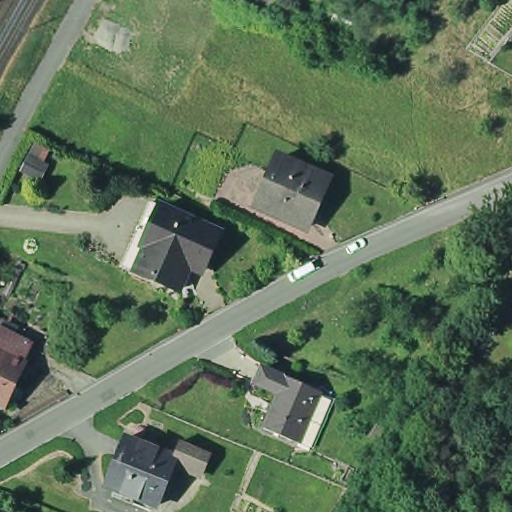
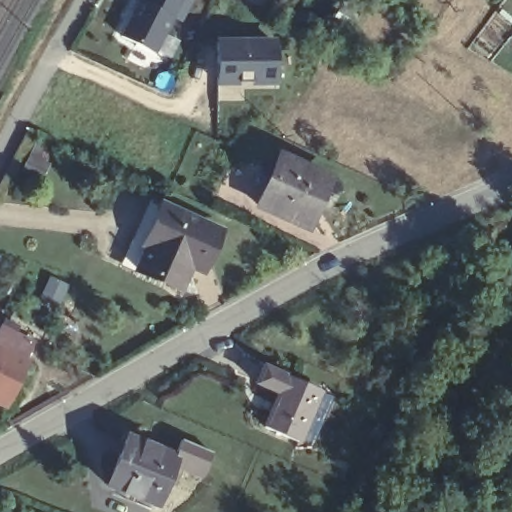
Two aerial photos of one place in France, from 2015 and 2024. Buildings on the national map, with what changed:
new [(131,7),(135,0),(176,0),(152,48),(119,31),(128,13),(131,7)]
new [(271,36),(271,78),(215,79),(214,37),(271,36)]
unchanged [(291,230),(251,211),(274,162),(321,184),(308,212),(299,233),(291,230)]
unchanged [(194,270),(185,293),(139,273),(128,268),(138,246),(156,205),(223,234),(212,260),(206,275),(194,270)]
unchanged [(15,396),(10,406),(5,403),(3,406),(0,404),(0,329),(30,342),(29,345),(21,361),(24,363),(14,385),(23,389),(19,398),(15,396)]
unchanged [(258,429),(266,409),(273,395),(250,385),(254,375),(256,368),(279,378),(314,393),(328,398),(325,406),(314,429),(306,448),(293,443),(258,429)]
unchanged [(168,483),(159,506),(109,486),(130,438),(176,457),(183,440),(214,452),(206,474),(184,465),(176,486),(168,483)]

